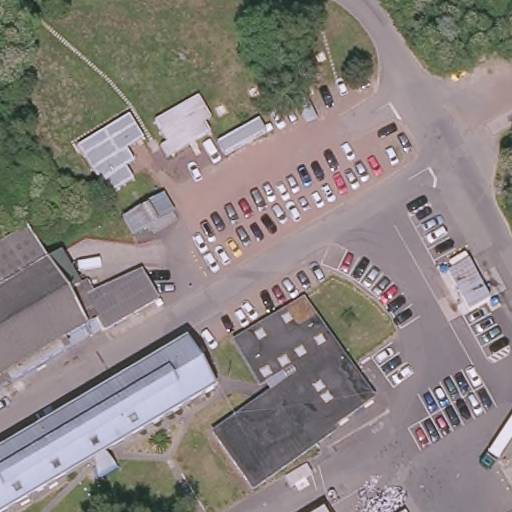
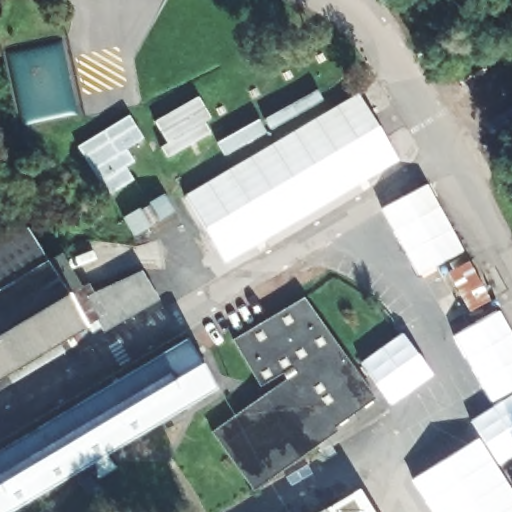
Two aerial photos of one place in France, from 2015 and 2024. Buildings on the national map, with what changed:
new [(359,91),(396,159),(223,257),(183,192),(359,91)]
new [(167,143),(155,122),(198,97),(211,119),(204,123),(210,134),(167,159),(160,147),(167,143)]
new [(78,147),(130,115),(144,139),(127,149),(135,162),(127,167),(135,180),(108,196),(78,147)]
new [(465,250),(417,274),(383,211),(430,187),(465,250)]
unchanged [(164,190),(175,214),(137,238),(122,214),(164,190)]
unchanged [(30,229),(47,257),(83,322),(57,338),(63,349),(9,381),(2,371),(0,372),(0,246),(30,229)]
unchanged [(81,288),(92,282),(100,292),(144,266),(160,295),(106,327),(97,314),(83,322),(47,257),(58,250),(81,288)]
unchanged [(495,297),(468,309),(448,270),(468,258),(495,297)]
unchanged [(212,432),(263,394),(233,341),(305,299),(375,402),(334,431),(336,436),(252,492),(212,432)]
new [(499,311),(512,333),(512,391),(492,403),(453,336),(499,311)]
new [(433,375),(391,407),(359,364),(400,334),(433,375)]
unchanged [(118,463),(95,478),(87,458),(0,510),(0,446),(185,335),(185,337),(212,381),(173,404),(102,448),(118,463)]
new [(512,395),(512,458),(500,466),(470,422),(512,395)]
new [(478,439),(512,492),(512,512),(432,512),(411,480),(478,439)]
new [(360,493),(372,512),(331,512),(330,512),(360,493)]

